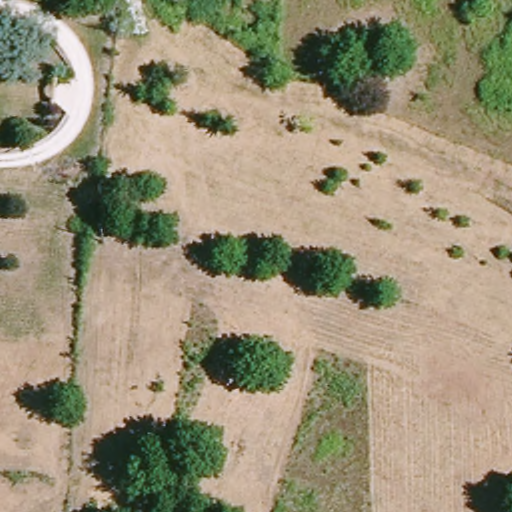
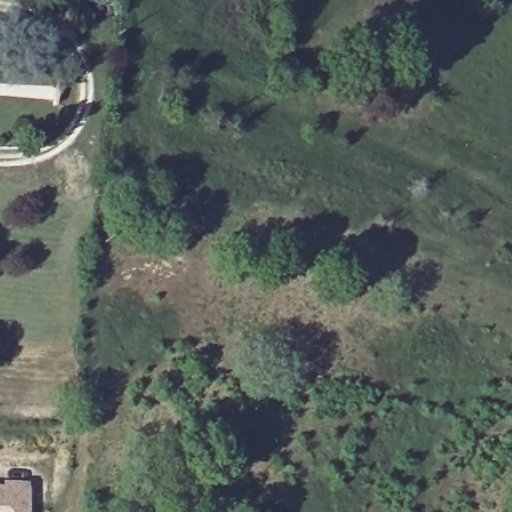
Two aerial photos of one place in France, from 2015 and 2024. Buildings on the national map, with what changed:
new [(7,487),(7,482),(30,483),(28,512),(0,512),(0,487),(7,487)]

